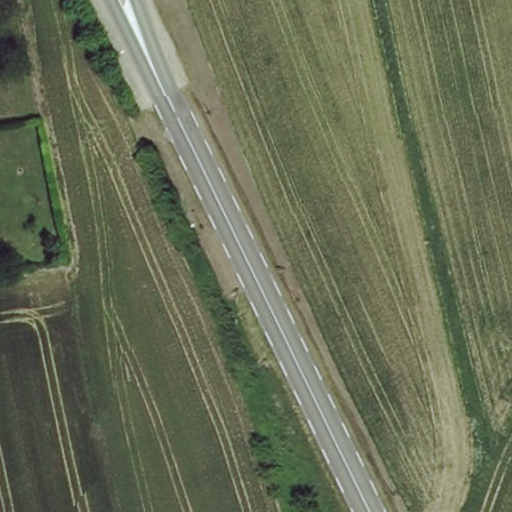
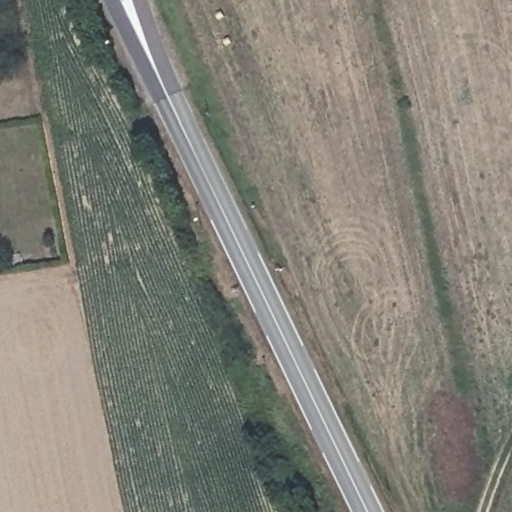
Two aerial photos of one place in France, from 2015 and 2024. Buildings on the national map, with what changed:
[]

